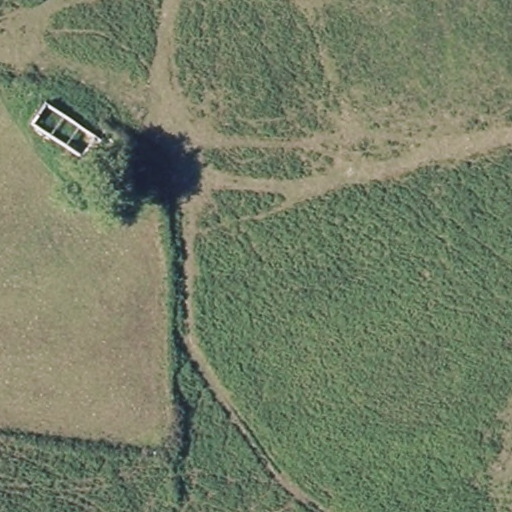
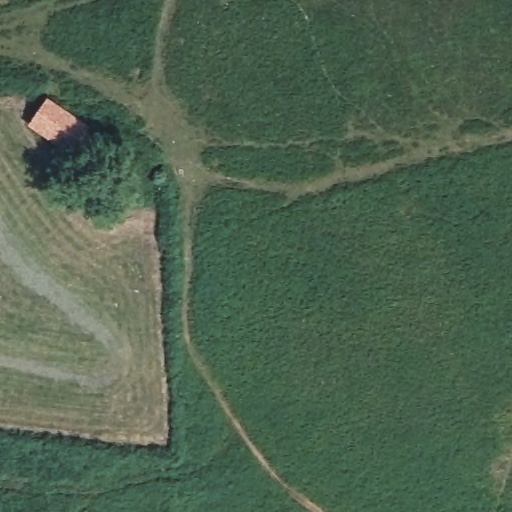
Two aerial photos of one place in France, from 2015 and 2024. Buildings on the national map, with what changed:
unchanged [(105,145),(90,166),(30,119),(46,99),(105,145)]

